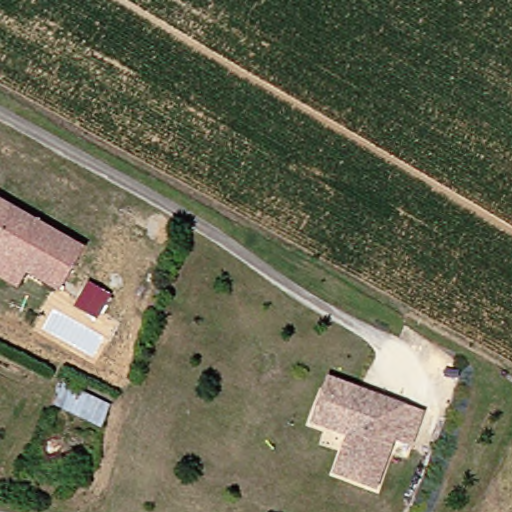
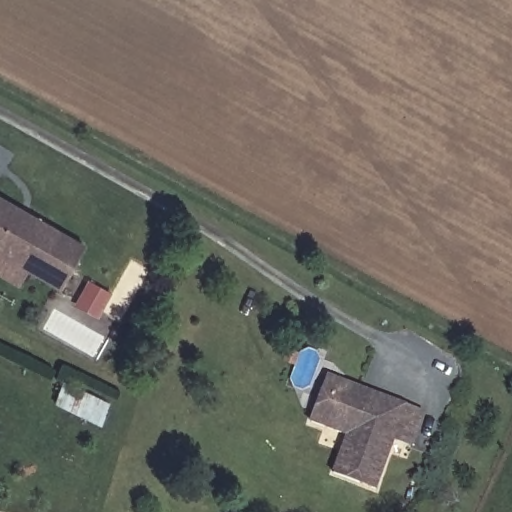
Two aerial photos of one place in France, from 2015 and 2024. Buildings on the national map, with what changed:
unchanged [(0,202),(83,253),(57,295),(25,275),(17,288),(0,278),(0,202)]
unchanged [(337,471),(348,433),(311,423),(320,391),(324,377),(368,389),(380,392),(404,399),(421,403),(419,412),(412,438),(395,433),(381,483),(337,471)]
unchanged [(105,410),(98,428),(53,410),(60,391),(105,410)]

